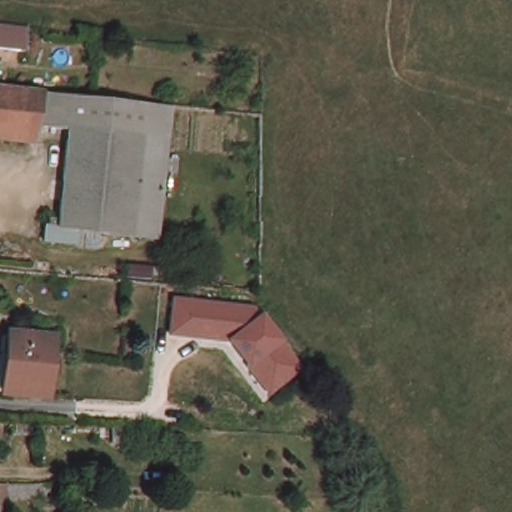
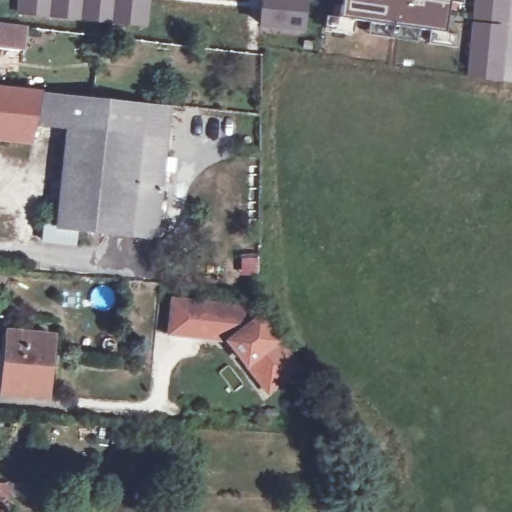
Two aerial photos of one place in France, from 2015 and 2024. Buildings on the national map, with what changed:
new [(21,0),(149,0),(147,26),(20,14),(21,0)]
new [(303,25),(260,22),(262,0),(305,0),(303,25)]
new [(457,50),(428,46),(430,33),(419,31),(417,44),(367,37),(368,24),(355,22),(352,35),(325,31),(327,18),(340,20),(342,0),(464,0),(463,5),(450,3),(445,34),(458,36),(457,50)]
new [(505,22),(480,19),(475,18),(476,0),(507,0),(505,22)]
unchanged [(30,28),(27,52),(0,49),(0,25),(30,28)]
new [(500,81),(475,78),(469,77),(473,25),(480,26),(505,28),(500,81)]
unchanged [(34,132),(33,142),(0,138),(0,93),(38,96),(34,132)]
unchanged [(38,96),(115,102),(98,233),(75,231),(73,247),(45,245),(47,207),(60,208),(67,134),(34,132),(38,96)]
unchanged [(115,102),(170,107),(159,237),(98,233),(115,102)]
new [(135,261),(170,264),(168,279),(133,276),(135,261)]
unchanged [(268,400),(228,344),(171,338),(173,301),(256,308),(302,370),(268,400)]
unchanged [(50,334),(54,396),(10,398),(7,335),(50,334)]

